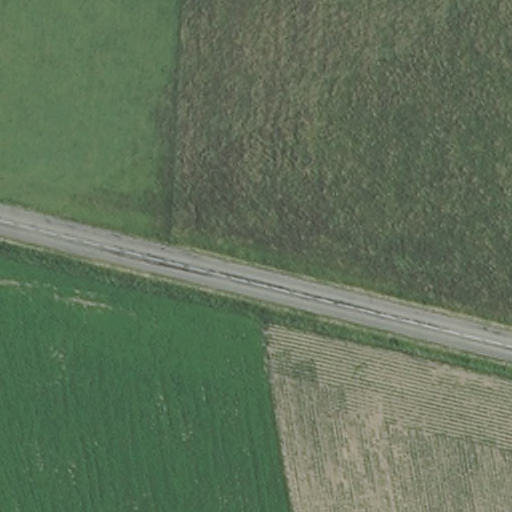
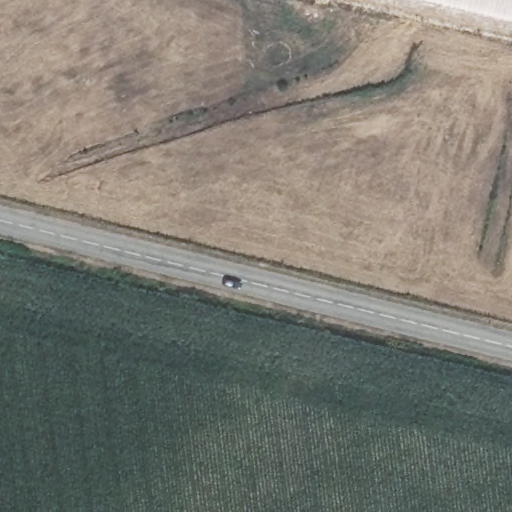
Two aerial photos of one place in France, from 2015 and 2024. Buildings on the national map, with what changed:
new [(421,0),(512,0),(512,21),(421,0)]

